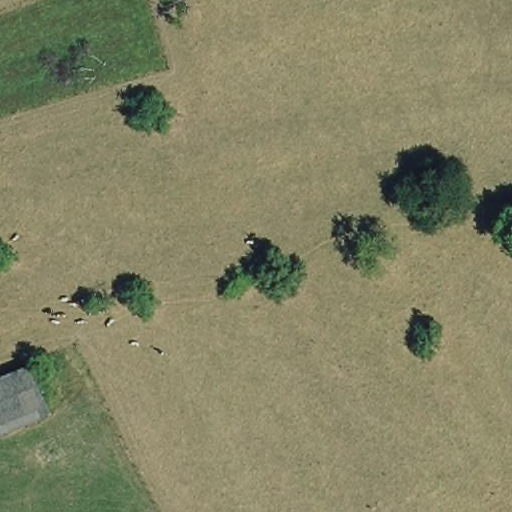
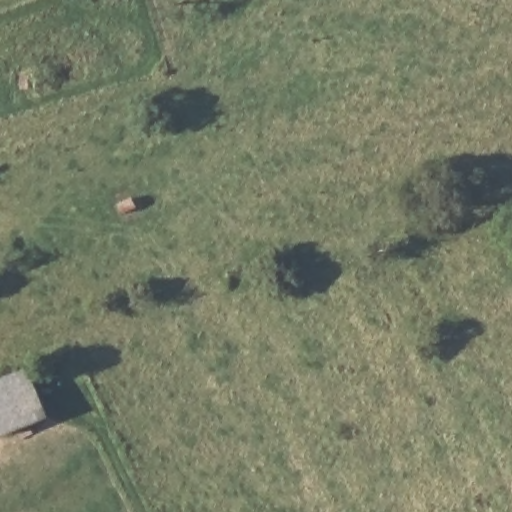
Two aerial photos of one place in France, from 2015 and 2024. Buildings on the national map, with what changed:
unchanged [(0,440),(0,380),(28,370),(48,422),(0,440)]

